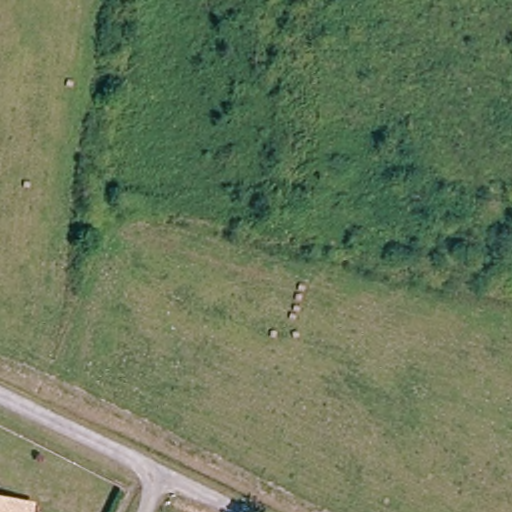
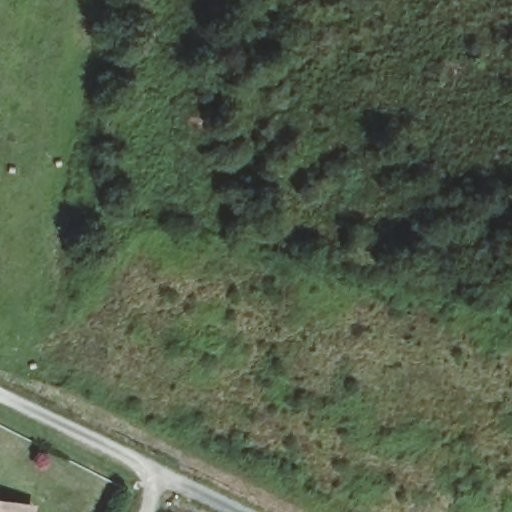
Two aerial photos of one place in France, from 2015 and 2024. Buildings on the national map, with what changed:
unchanged [(34,512),(0,512),(0,502),(35,507),(34,512)]

